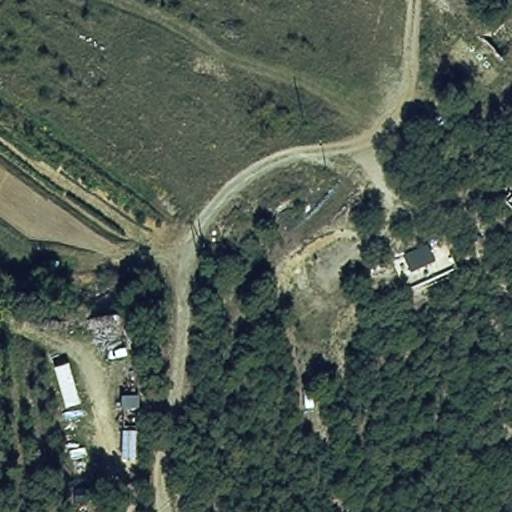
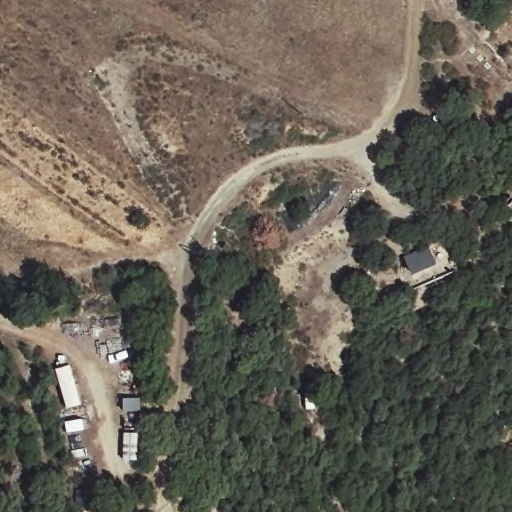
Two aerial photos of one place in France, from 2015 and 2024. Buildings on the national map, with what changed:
unchanged [(403,255),(429,243),(439,268),(414,280),(403,255)]

